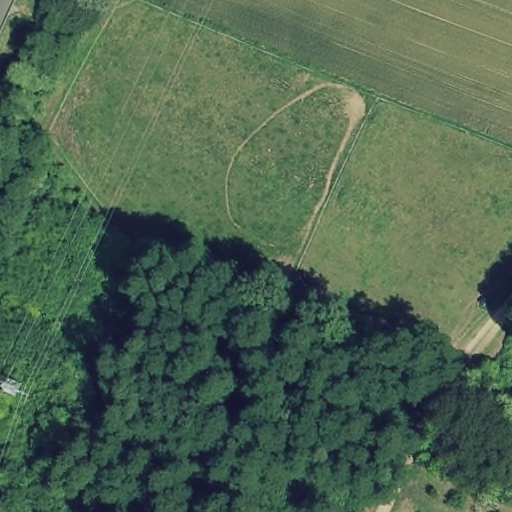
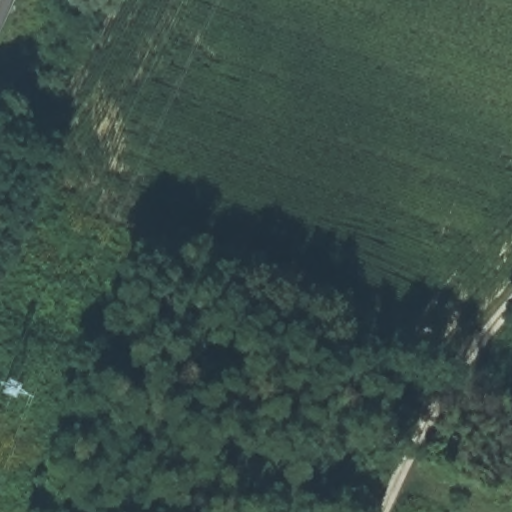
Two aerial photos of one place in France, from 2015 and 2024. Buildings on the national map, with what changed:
[]

